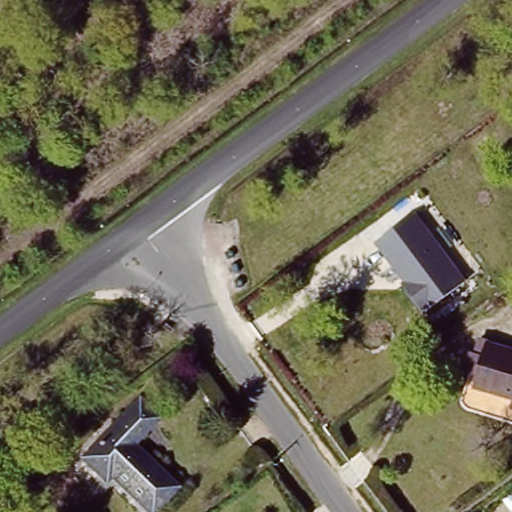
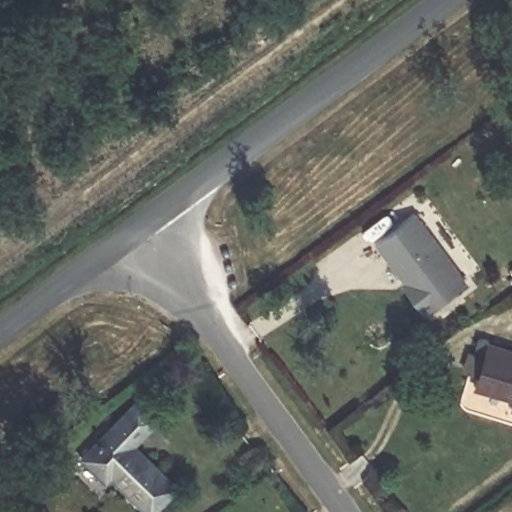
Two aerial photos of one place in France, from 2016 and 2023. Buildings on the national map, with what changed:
unchanged [(399,286),(402,284),(373,244),(415,213),(465,282),(420,315),(399,286)]
unchanged [(479,371),(463,367),(469,350),(484,354),(488,343),(512,350),(512,397),(474,386),(479,371)]
unchanged [(143,404),(162,423),(137,449),(180,494),(163,512),(147,512),(115,481),(109,487),(85,463),(143,404)]
unchanged [(512,404),(512,407),(511,407),(512,404)]

